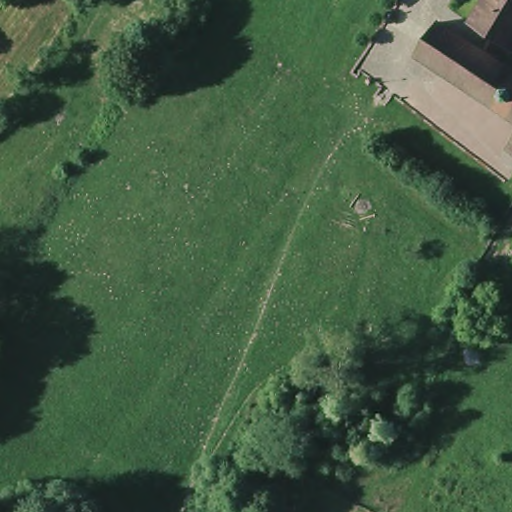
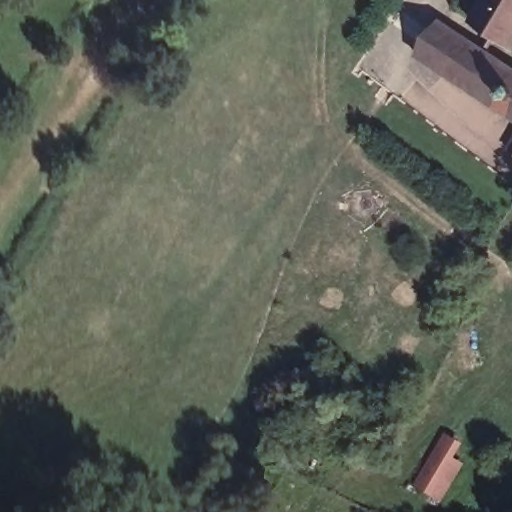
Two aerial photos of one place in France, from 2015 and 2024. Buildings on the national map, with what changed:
unchanged [(490,0),(512,0),(512,38),(479,19),(490,0)]
unchanged [(417,50),(440,16),(512,63),(512,114),(417,50)]
unchanged [(507,144),(512,136),(512,148),(507,144)]
new [(465,443),(456,458),(465,464),(442,503),(412,485),(445,431),(465,443)]

